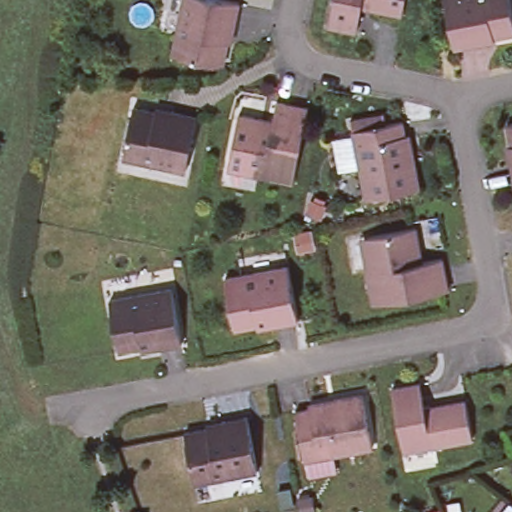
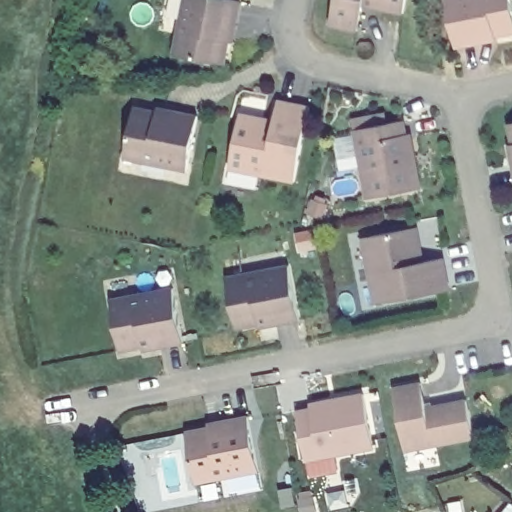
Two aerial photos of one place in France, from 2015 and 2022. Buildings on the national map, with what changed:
unchanged [(229,37),(225,60),(174,50),(184,0),(241,0),(236,24),(233,39),(229,37)]
unchanged [(335,0),(407,0),(405,14),(364,6),(358,30),(330,25),(335,0)]
unchanged [(480,42),(456,47),(446,0),(512,0),(512,1),(512,33),(495,36),(497,40),(480,42)]
unchanged [(232,156),(241,111),(275,117),(279,97),(310,104),(295,177),(260,170),(230,164),(232,156)]
unchanged [(187,160),(125,150),(134,100),(157,104),(158,99),(174,101),(198,107),(187,160)]
unchanged [(368,200),(355,130),(402,121),(405,135),(410,135),(415,160),(422,187),(368,200)]
unchanged [(510,125),(512,125),(512,134),(510,125)]
unchanged [(512,148),(512,154),(511,148),(512,148)]
unchanged [(425,257),(444,254),(450,285),(375,299),(368,263),(362,235),(370,233),(417,224),(425,257)]
unchanged [(260,325),(238,329),(227,278),(290,266),(300,320),(275,326),(260,329),(260,325)]
unchanged [(144,342),(120,347),(112,296),(175,284),(185,338),(161,343),(145,347),(144,342)]
unchanged [(422,378),(427,403),(467,395),(475,432),(407,445),(394,384),(422,378)]
unchanged [(375,447),(307,461),(297,412),(312,410),(310,405),(336,400),(365,394),(375,447)]
unchanged [(259,470),(195,483),(185,433),(207,428),(207,425),(222,421),(247,416),(259,470)]

